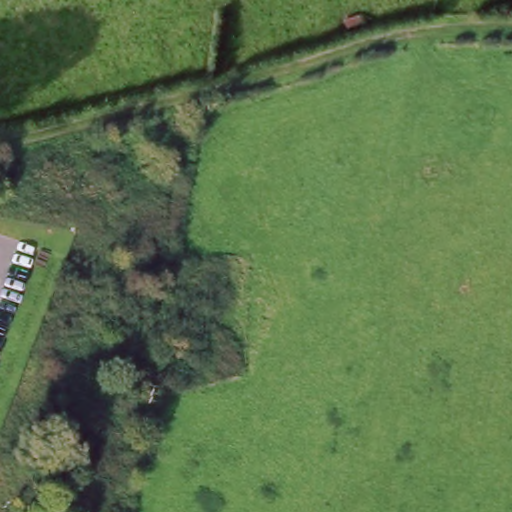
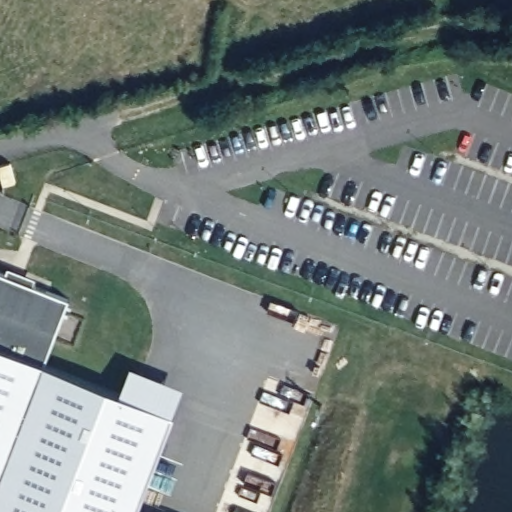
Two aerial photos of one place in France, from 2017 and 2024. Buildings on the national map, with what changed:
new [(43,362),(119,391),(171,410),(136,508),(134,512),(0,512),(0,265),(69,290),(43,362)]
new [(159,375),(181,382),(171,410),(119,391),(129,363),(159,375)]
new [(154,512),(134,512),(136,508),(136,506),(154,512)]

